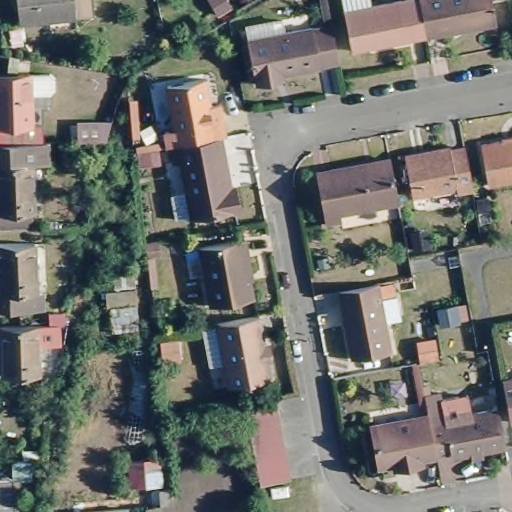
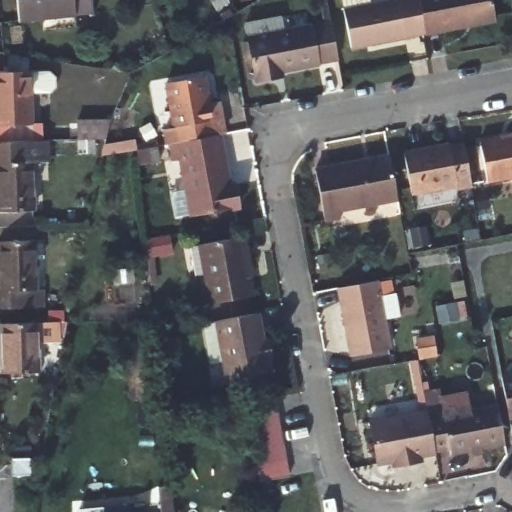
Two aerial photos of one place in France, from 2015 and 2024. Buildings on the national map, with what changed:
unchanged [(91,0),(93,15),(19,22),(16,0),(91,0)]
unchanged [(208,0),(229,0),(231,4),(230,5),(216,14),(208,0)]
unchanged [(344,10),(392,0),(418,0),(419,5),(424,34),(351,48),(344,10)]
unchanged [(424,35),(424,34),(419,5),(418,0),(494,0),(497,14),(498,20),(463,27),(424,35)]
unchanged [(273,78),(254,82),(246,37),(329,21),(336,58),(317,62),(318,65),(280,71),(281,77),(273,78)]
unchanged [(26,125),(0,126),(0,76),(24,75),(26,125)]
unchanged [(163,132),(173,131),(164,87),(202,79),(207,107),(217,105),(223,137),(218,137),(166,147),(163,132)]
unchanged [(71,112),(103,111),(98,127),(72,128),(71,112)]
unchanged [(218,137),(228,190),(233,190),(236,209),(188,217),(178,163),(169,164),(166,147),(218,137)]
unchanged [(484,186),(477,145),(512,138),(512,180),(484,186)]
unchanged [(41,144),(41,166),(30,166),(31,214),(21,214),(22,229),(0,229),(0,146),(18,145),(41,144)]
unchanged [(471,187),(457,191),(455,185),(411,194),(403,153),(448,145),(449,149),(464,146),(471,187)]
unchanged [(396,199),(339,210),(341,218),(324,222),(314,170),(388,156),(396,199)]
unchanged [(243,236),(246,252),(243,252),(251,295),(210,303),(198,244),(243,236)]
unchanged [(35,293),(0,295),(0,243),(33,242),(35,293)]
unchanged [(333,291),(380,282),(392,348),(347,356),(333,291)]
unchanged [(210,337),(207,322),(246,315),(248,327),(253,328),(254,337),(251,340),(253,350),(256,349),(262,377),(235,382),(219,386),(210,337)]
unchanged [(39,372),(3,373),(0,332),(0,323),(38,321),(39,372)]
unchanged [(512,378),(512,421),(507,422),(499,380),(512,378)]
unchanged [(251,467),(248,452),(245,436),(242,420),(239,407),(269,401),(272,415),(274,430),(278,447),(281,461),(283,477),(254,482),(251,467)]
unchanged [(442,415),(443,421),(496,411),(504,450),(476,455),(450,460),(449,453),(434,457),(429,434),(426,417),(442,415)]
unchanged [(426,417),(429,434),(434,457),(434,458),(419,462),(419,466),(393,471),(392,467),(377,469),(369,427),(387,423),(426,416),(426,417)]
unchanged [(143,505),(156,504),(155,488),(170,487),(173,512),(144,512),(143,505)]
unchanged [(100,510),(100,512),(82,512),(100,510)]
unchanged [(185,511),(185,512),(173,512),(185,511)]

